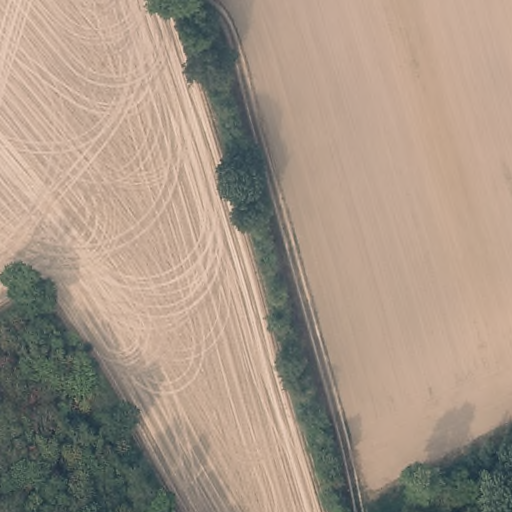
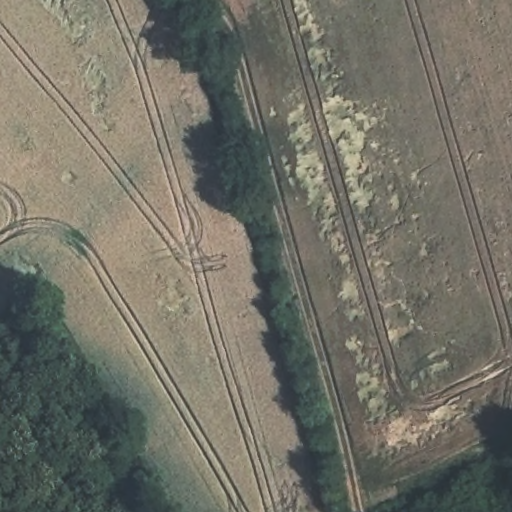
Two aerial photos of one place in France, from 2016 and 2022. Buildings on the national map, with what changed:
[]

